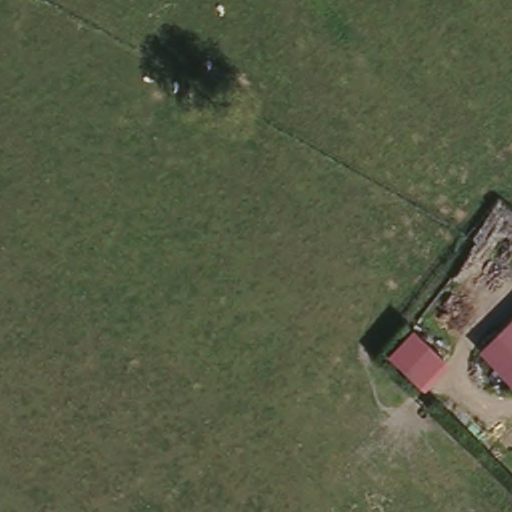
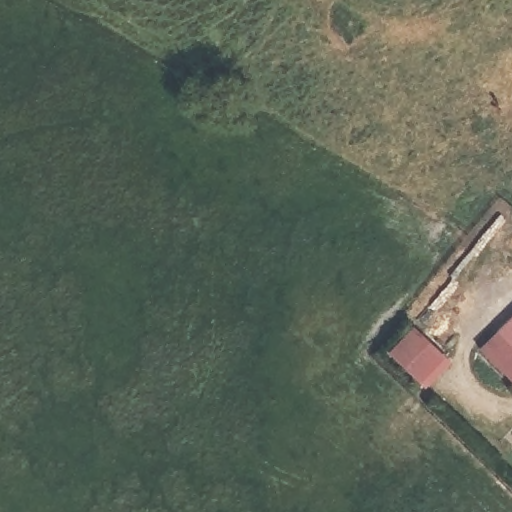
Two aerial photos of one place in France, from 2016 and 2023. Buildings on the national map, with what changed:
unchanged [(512,357),(491,337),(512,317),(512,357)]
unchanged [(411,329),(440,359),(415,384),(386,354),(411,329)]
unchanged [(512,391),(511,393),(473,354),(491,337),(512,357),(512,391)]

